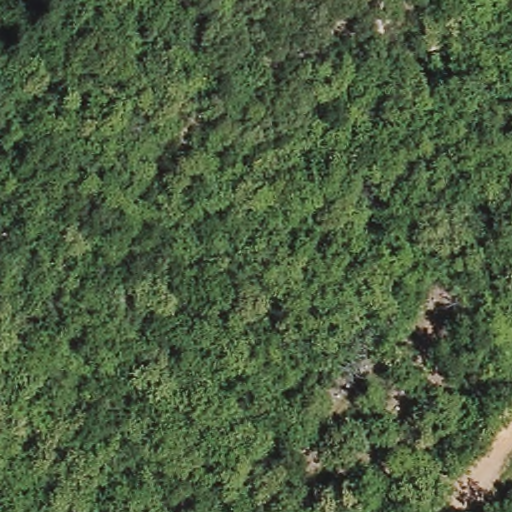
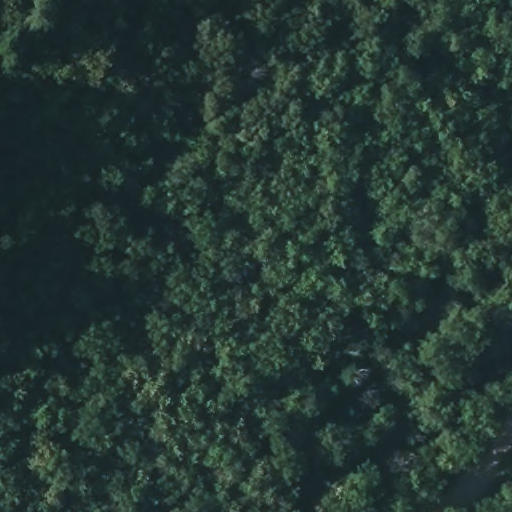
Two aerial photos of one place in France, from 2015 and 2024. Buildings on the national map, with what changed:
[]

